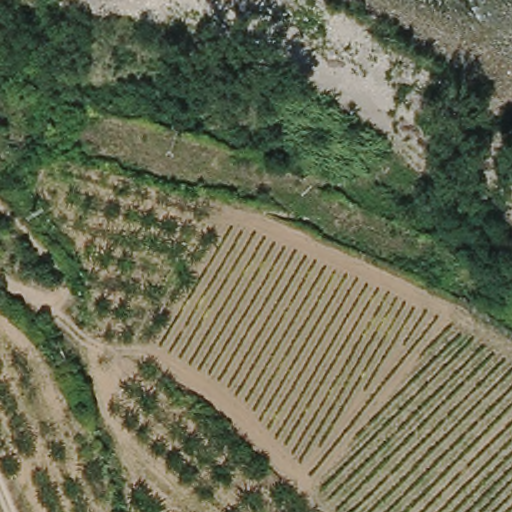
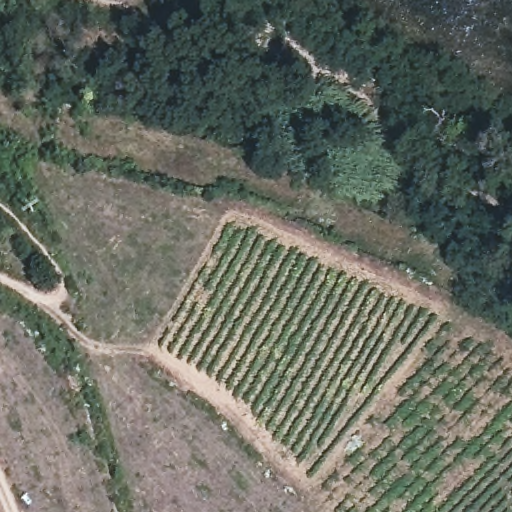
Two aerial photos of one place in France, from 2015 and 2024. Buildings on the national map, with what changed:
[]

